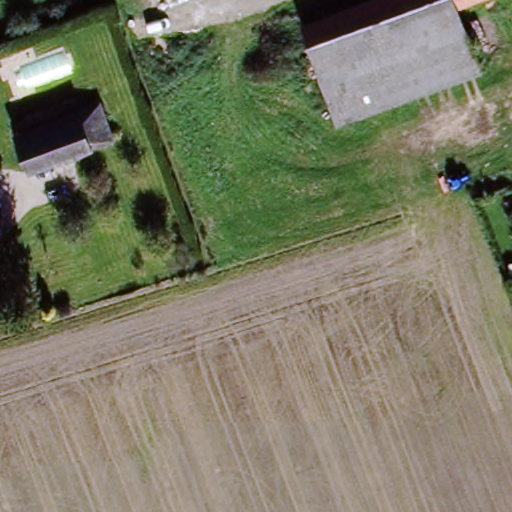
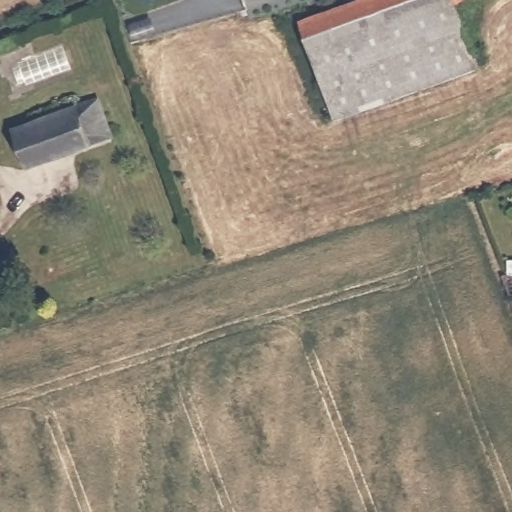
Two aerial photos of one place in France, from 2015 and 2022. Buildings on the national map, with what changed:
unchanged [(312,55),(302,25),(383,0),(463,0),(465,7),(455,10),(312,55)]
unchanged [(463,0),(487,0),(465,7),(463,0)]
unchanged [(312,55),(455,10),(477,74),(333,120),(312,55)]
unchanged [(27,166),(16,123),(102,101),(113,144),(27,166)]

